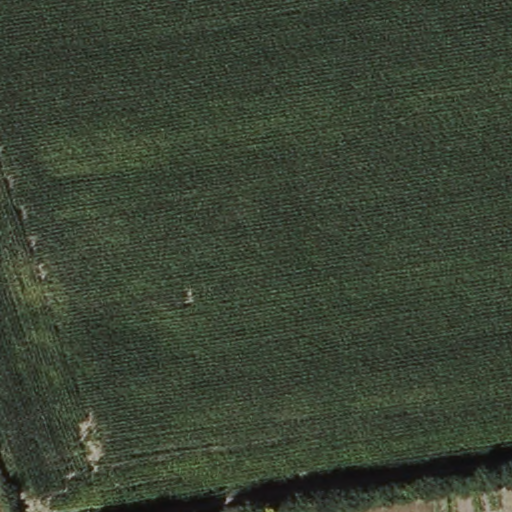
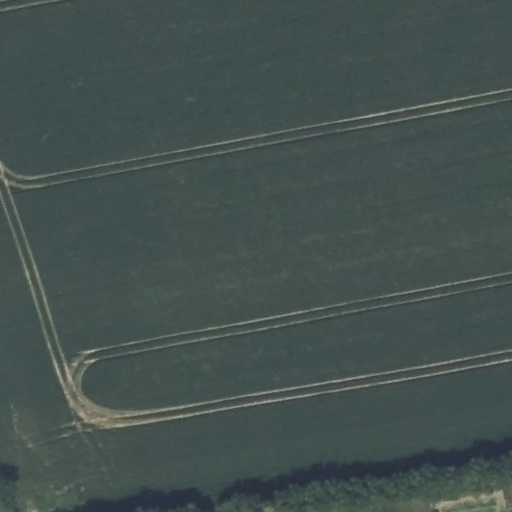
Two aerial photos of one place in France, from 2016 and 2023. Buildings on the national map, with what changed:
unchanged [(227,509),(227,512),(210,512),(227,509)]

